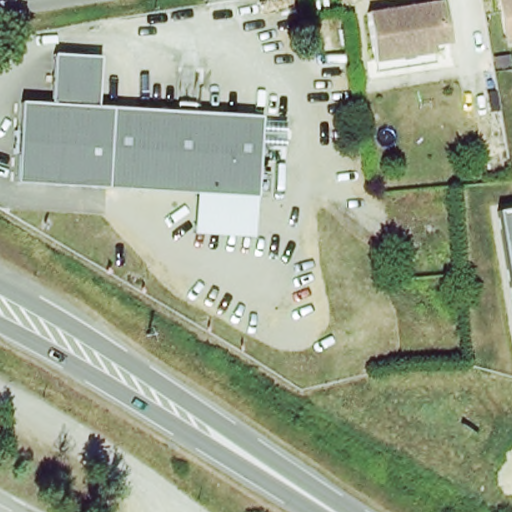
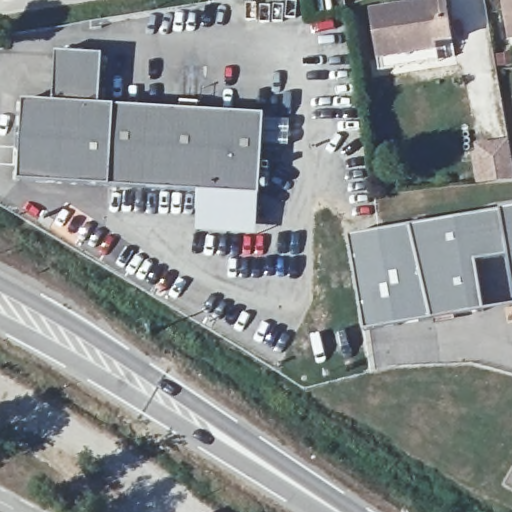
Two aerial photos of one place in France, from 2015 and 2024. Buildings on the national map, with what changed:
unchanged [(443,0),(450,37),(395,46),(397,54),(375,57),(367,9),(419,0),(443,0)]
unchanged [(497,0),(512,0),(512,41),(506,42),(497,0)]
unchanged [(51,103),(53,53),(100,55),(98,105),(263,112),(260,193),(199,190),(18,182),(22,102),(51,103)]
new [(507,139),(512,169),(512,182),(477,184),(471,145),(507,139)]
unchanged [(260,193),(258,232),(197,229),(199,190),(260,193)]
unchanged [(512,208),(512,273),(502,210),(512,208)]
new [(366,330),(349,238),(502,210),(512,274),(512,306),(366,330)]

